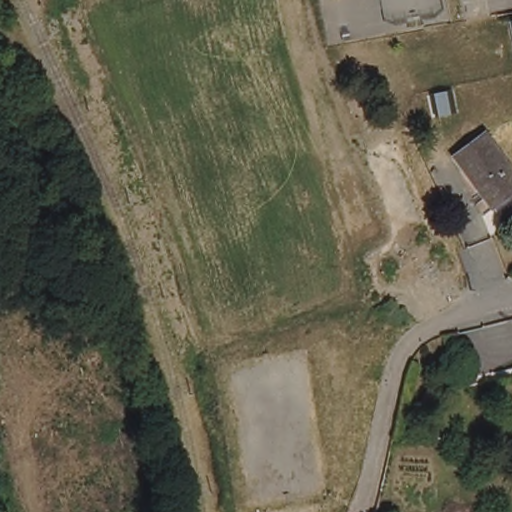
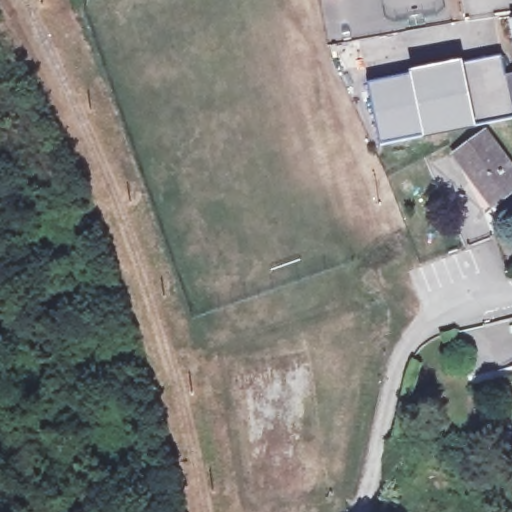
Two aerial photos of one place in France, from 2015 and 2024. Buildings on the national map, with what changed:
unchanged [(512,24),(512,44),(508,25),(512,24)]
demolished [(512,29),(512,77),(502,31),(512,29)]
new [(512,75),(512,117),(383,146),(368,81),(502,52),(508,76),(512,75)]
unchanged [(512,164),(512,198),(501,206),(455,154),(485,132),(512,164)]
unchanged [(430,387),(422,404),(408,398),(417,381),(430,387)]

